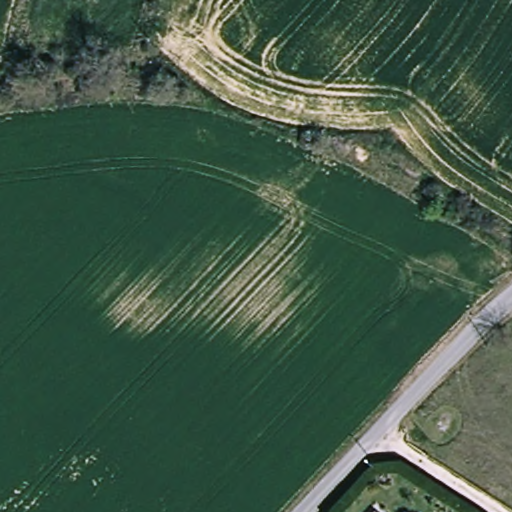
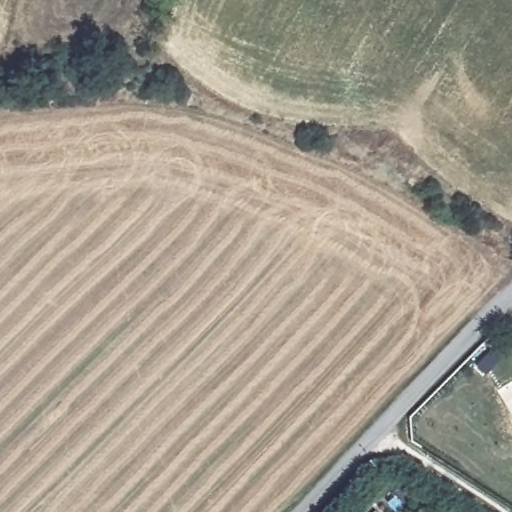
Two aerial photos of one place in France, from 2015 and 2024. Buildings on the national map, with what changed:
unchanged [(388,512),(375,512),(382,505),(388,512)]

